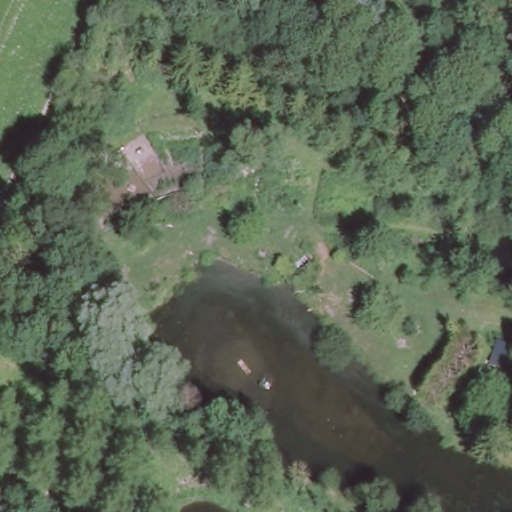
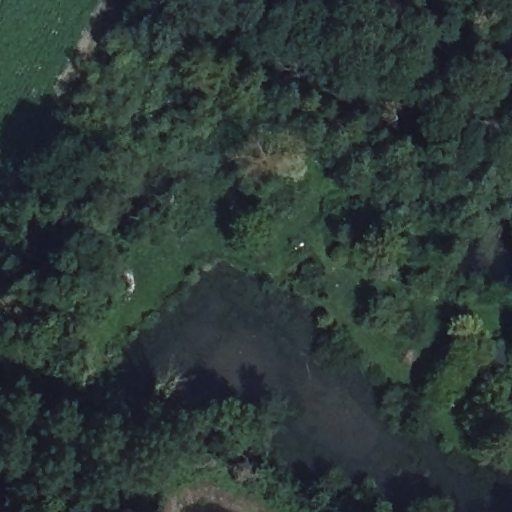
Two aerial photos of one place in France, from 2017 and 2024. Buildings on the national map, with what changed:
unchanged [(512,374),(491,366),(500,340),(512,346),(512,374)]

